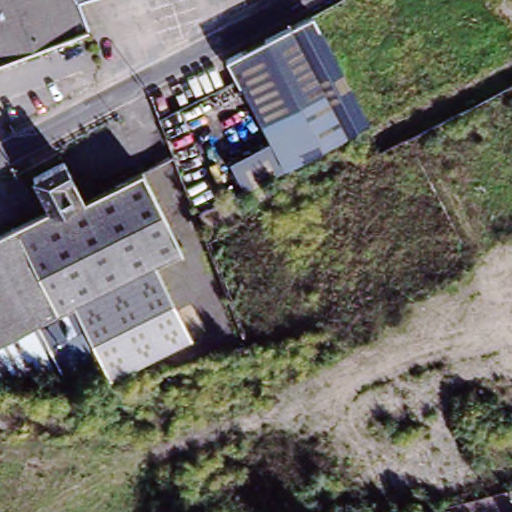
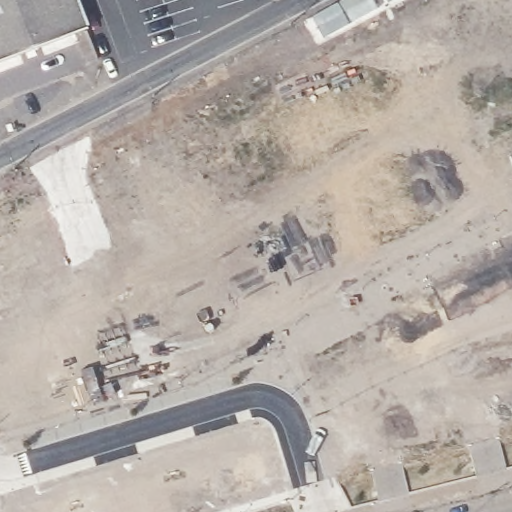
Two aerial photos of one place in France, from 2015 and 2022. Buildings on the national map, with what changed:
unchanged [(0,61),(0,0),(76,0),(82,16),(85,29),(0,61)]
demolished [(402,61),(407,72),(391,82),(348,0),(370,0),(402,61)]
demolished [(410,26),(407,28),(419,51),(402,61),(370,0),(396,0),(410,26)]
demolished [(287,30),(337,125),(345,139),(237,196),(234,189),(237,186),(227,166),(267,144),(224,63),(287,30)]
demolished [(440,51),(452,74),(437,81),(426,58),(440,51)]
demolished [(411,80),(424,73),(434,93),(422,99),(401,110),(399,111),(394,102),(381,109),(371,89),(384,82),(391,96),(394,95),(414,85),(411,80)]
demolished [(107,377),(85,377),(58,377),(25,378),(0,378),(0,232),(47,209),(32,180),(38,178),(37,176),(67,161),(82,192),(86,200),(145,171),(185,253),(82,304),(117,377),(107,377)]
demolished [(82,304),(158,267),(192,340),(117,377),(82,304)]

